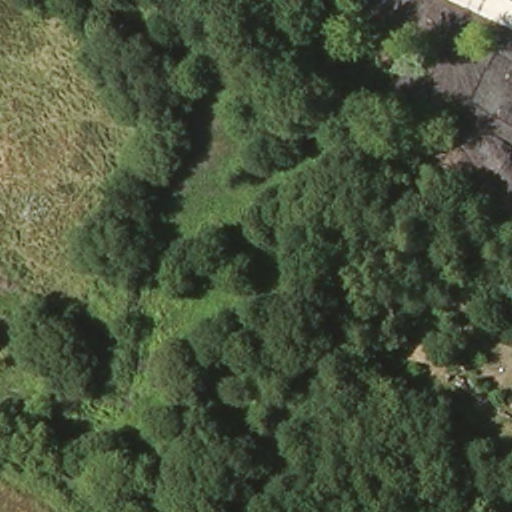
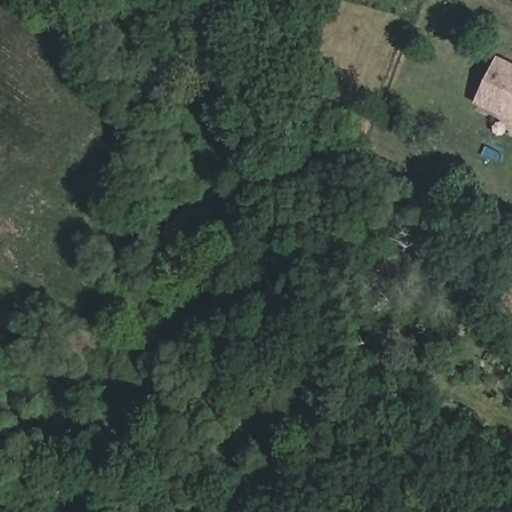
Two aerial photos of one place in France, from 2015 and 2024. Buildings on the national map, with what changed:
new [(475,103),(497,55),(512,62),(512,120),(475,103)]

